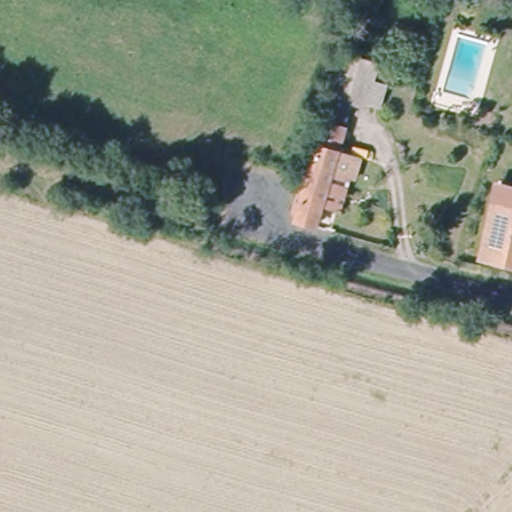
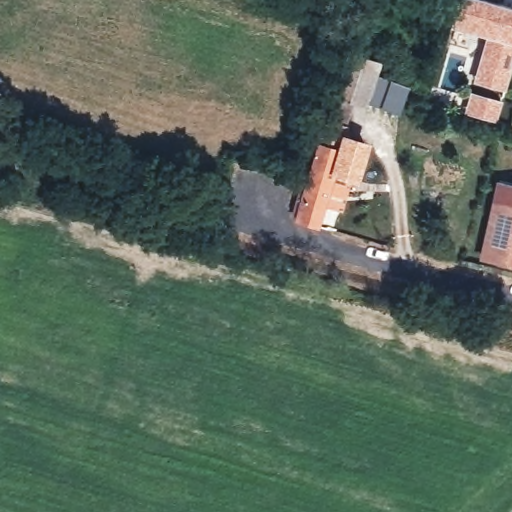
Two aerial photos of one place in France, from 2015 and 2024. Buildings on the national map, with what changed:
new [(512,8),(512,58),(504,90),(474,82),(485,37),(448,27),(455,0),(479,0),(512,8)]
unchanged [(361,47),(349,87),(333,82),(345,42),(361,47)]
unchanged [(363,55),(387,62),(383,82),(389,85),(382,112),(356,107),(352,119),(329,112),(337,88),(351,92),(363,55)]
unchanged [(312,164),(307,162),(311,149),(317,150),(324,125),(331,127),(334,115),(347,119),(320,217),(299,210),(312,164)]
unchanged [(336,167),(355,174),(347,210),(326,202),(336,167)]
unchanged [(503,181),(512,183),(512,259),(487,253),(503,181)]

